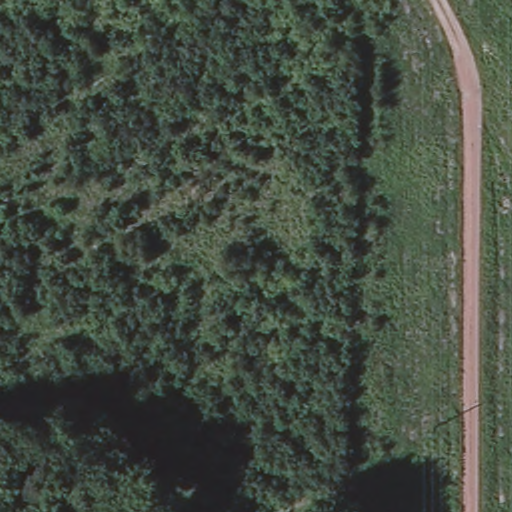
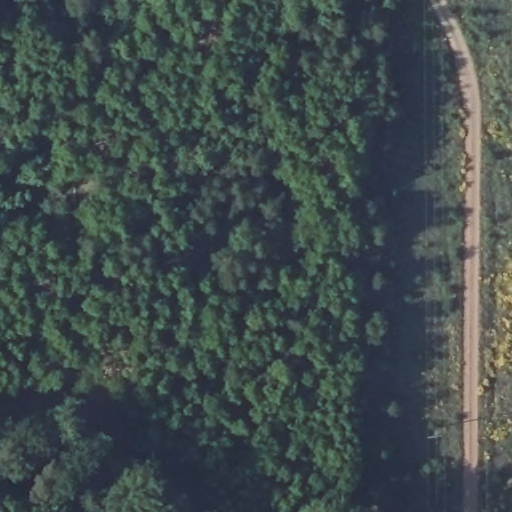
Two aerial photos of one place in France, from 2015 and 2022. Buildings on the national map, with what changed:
[]

